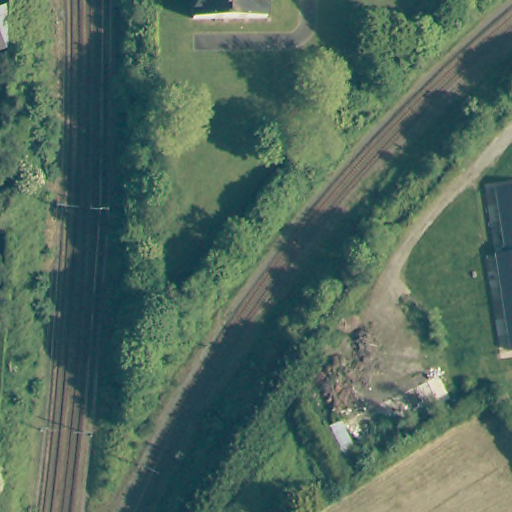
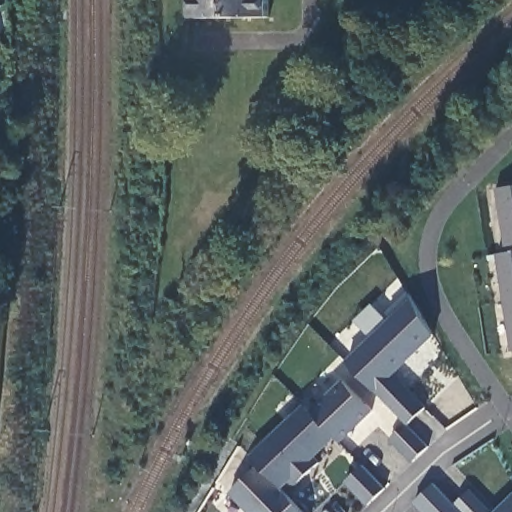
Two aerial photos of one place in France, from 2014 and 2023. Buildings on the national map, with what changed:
unchanged [(191,0),(263,0),(262,18),(191,19),(191,0)]
unchanged [(0,10),(2,9),(1,52),(0,52),(0,10)]
unchanged [(497,259),(506,257),(497,194),(512,192),(512,348),(497,259)]
new [(412,461),(389,439),(405,423),(345,363),(391,317),(387,314),(409,293),(433,336),(395,373),(427,407),(406,424),(427,446),(412,461)]
new [(338,439),(315,457),(319,461),(294,486),(289,481),(282,487),(265,468),(252,453),(305,406),(312,412),(344,381),(373,411),(341,442),(338,439)]
demolished [(321,438),(341,428),(342,429),(438,381),(450,404),(334,462),(321,438)]
new [(256,471),(259,473),(265,468),(282,487),(306,512),(251,512),(233,493),(256,471)]
new [(433,483),(455,505),(470,490),(494,512),(422,512),(413,504),(433,483)]
new [(496,512),(512,495),(512,512),(496,512)]

